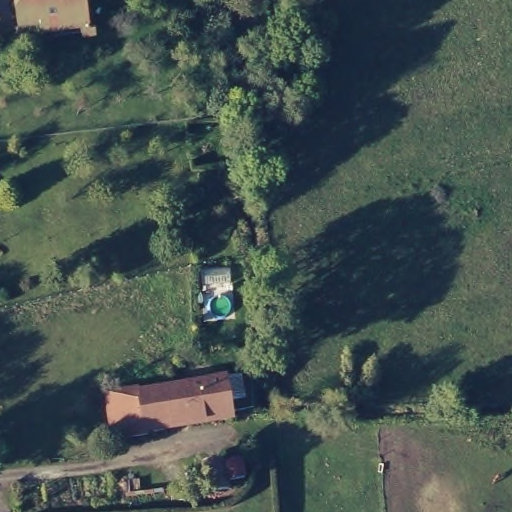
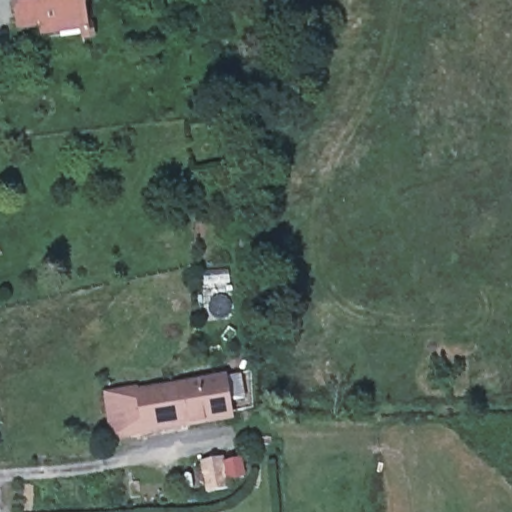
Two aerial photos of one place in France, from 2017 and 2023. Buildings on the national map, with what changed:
unchanged [(10,30),(7,0),(74,0),(77,20),(78,29),(35,34),(33,26),(10,30)]
unchanged [(230,371),(238,413),(153,427),(153,429),(132,432),(132,430),(120,432),(113,390),(145,383),(145,387),(230,371)]
unchanged [(230,487),(208,492),(202,466),(223,461),(230,487)]

